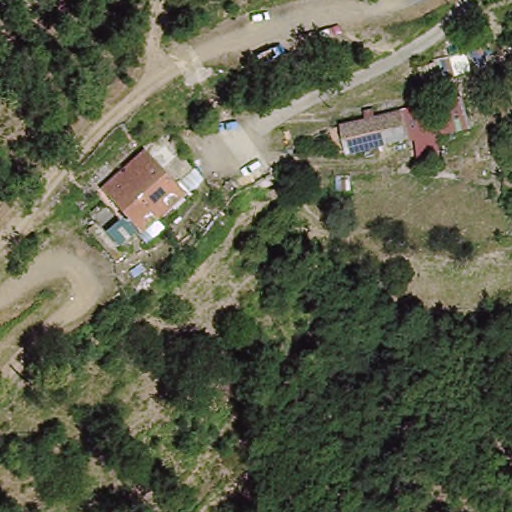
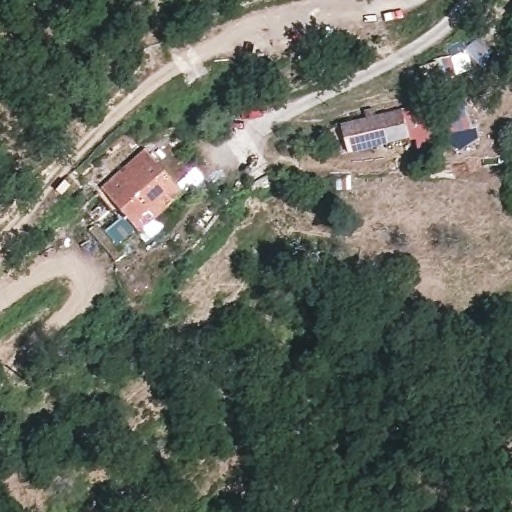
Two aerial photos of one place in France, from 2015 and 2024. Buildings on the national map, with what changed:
unchanged [(423,161),(418,139),(346,154),(339,122),(471,94),(476,130),(461,134),(466,156),(423,161)]
unchanged [(143,226),(108,192),(148,148),(161,142),(176,158),(168,167),(185,183),(143,226)]

